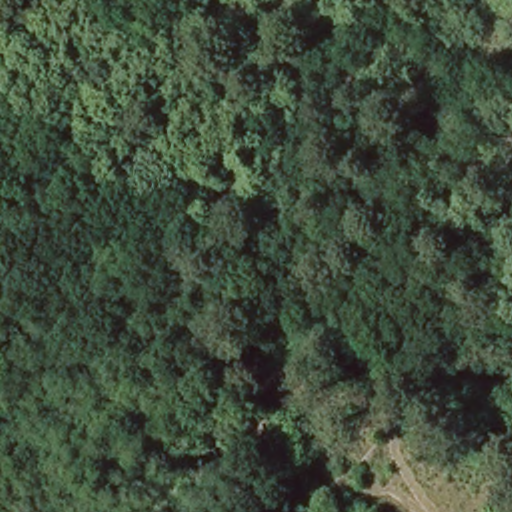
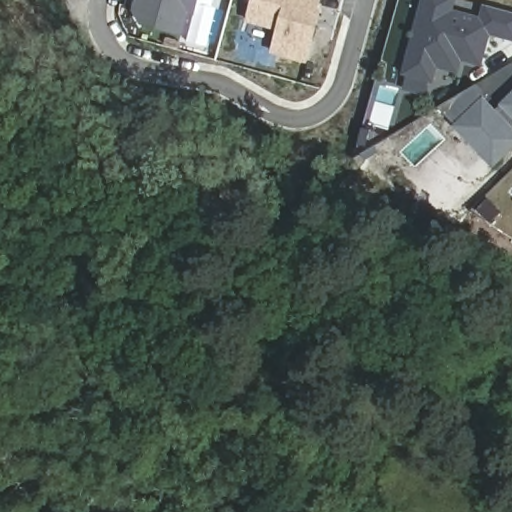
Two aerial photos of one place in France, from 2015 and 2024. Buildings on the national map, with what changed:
new [(192,12),(185,10),(179,34),(141,23),(132,9),(134,0),(195,0),(192,12)]
new [(305,60),(271,51),(277,28),(246,19),(251,0),(317,0),(314,10),(318,11),(316,18),(314,25),(305,60)]
new [(422,0),(455,0),(453,9),(482,17),(484,5),(512,12),(512,41),(490,35),(482,65),(461,61),(457,73),(436,69),(432,82),(402,74),(422,0)]
new [(488,148),(482,154),(437,107),(476,84),(487,96),(484,99),(494,110),(502,104),(498,99),(512,87),(512,146),(498,159),(488,148)]

